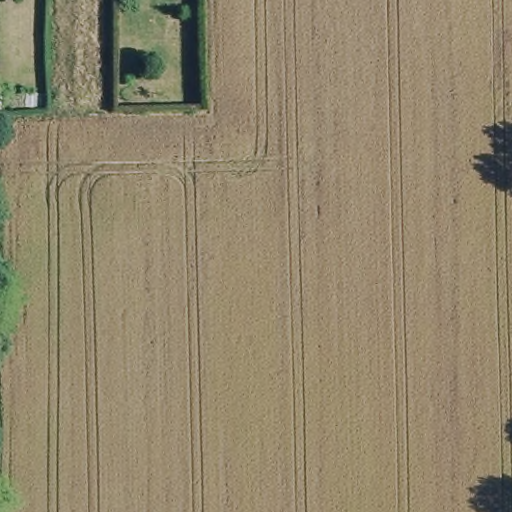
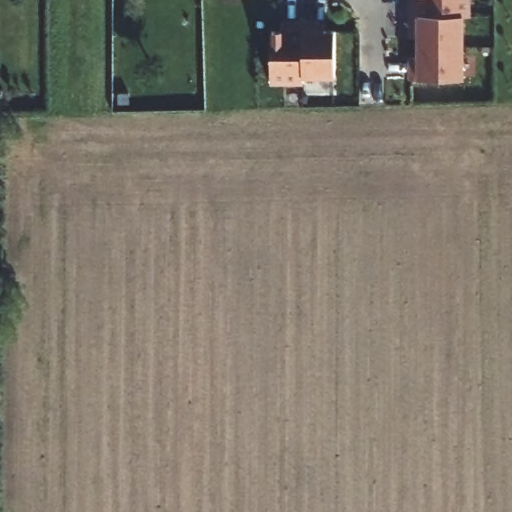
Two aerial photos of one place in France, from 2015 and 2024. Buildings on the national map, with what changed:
new [(469,17),(464,16),(462,73),(410,74),(410,61),(417,61),(417,27),(407,27),(408,0),(469,0),(469,17)]
new [(288,32),(287,24),(317,25),(318,33),(335,33),(335,78),(305,79),(305,83),(272,83),(272,32),(288,32)]

